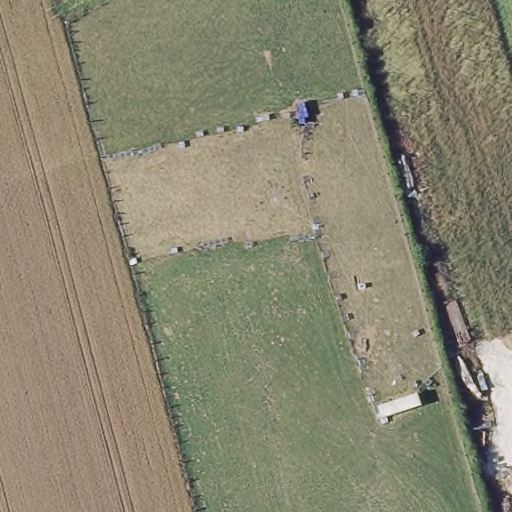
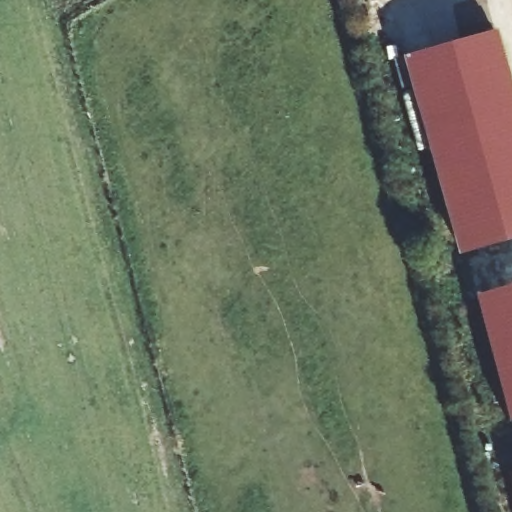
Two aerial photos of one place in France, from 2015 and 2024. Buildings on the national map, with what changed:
new [(496,34),(512,90),(512,242),(460,255),(406,60),(496,34)]
new [(512,291),(512,421),(509,422),(477,300),(512,291)]
new [(510,470),(512,470),(512,477),(510,470)]

